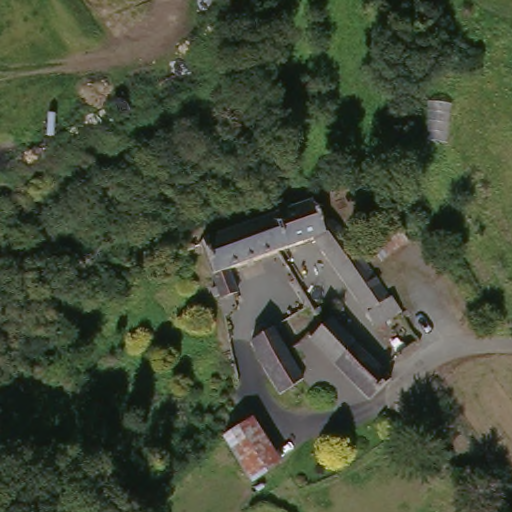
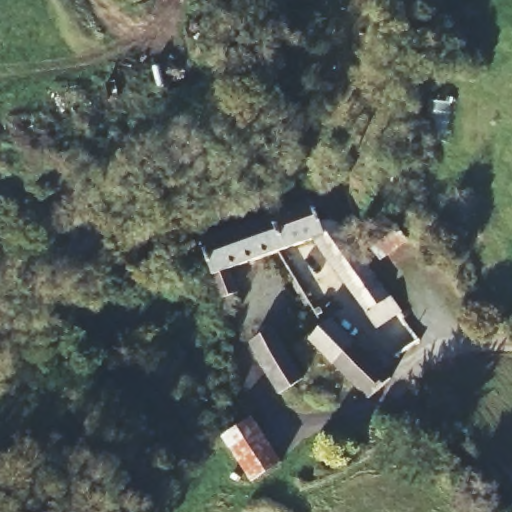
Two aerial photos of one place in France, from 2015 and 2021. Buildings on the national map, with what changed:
unchanged [(319,240),(293,249),(278,216),(322,201),(334,223),(344,218),(419,338),(393,354),(319,240)]
unchanged [(242,266),(249,288),(239,293),(244,307),(230,313),(227,284),(208,241),(278,216),(293,249),(289,250),(242,266)]
unchanged [(417,235),(428,251),(399,269),(389,252),(417,235)]
unchanged [(340,319),(382,367),(397,383),(373,397),(319,338),(334,325),(340,319)]
unchanged [(284,333),(307,384),(284,395),(260,342),(284,333)]
unchanged [(282,458),(254,475),(243,456),(233,439),(260,423),(282,458)]

